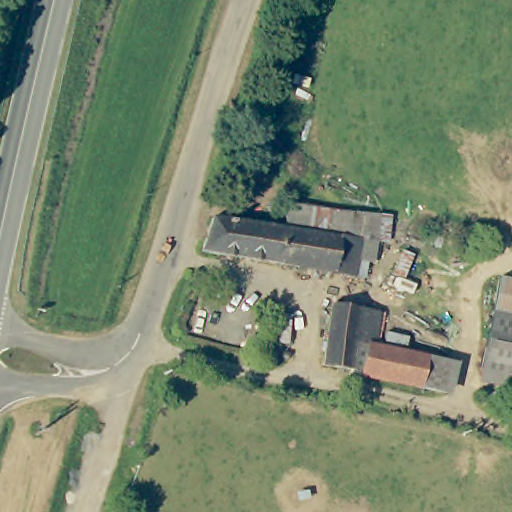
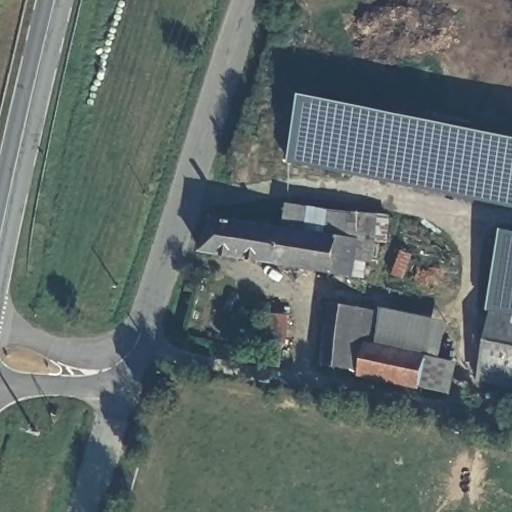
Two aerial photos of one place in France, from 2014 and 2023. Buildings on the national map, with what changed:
new [(302,95),(512,137),(512,206),(290,163),(302,95)]
new [(346,233),(284,223),(287,203),(349,212),(346,233)]
unchanged [(346,233),(350,207),(376,210),(371,256),(366,256),(364,273),(352,271),(359,235),(346,233)]
unchanged [(277,222),(346,233),(359,235),(352,271),(200,246),(212,212),(277,222)]
new [(512,389),(476,382),(498,277),(512,279),(512,389)]
unchanged [(327,365),(336,303),(363,307),(355,369),(327,365)]
new [(448,321),(441,358),(377,344),(383,311),(384,306),(448,321)]
unchanged [(383,311),(377,344),(458,361),(451,392),(364,374),(355,369),(363,307),(383,311)]
unchanged [(282,344),(259,341),(261,313),(284,315),(282,344)]
unchanged [(275,356),(273,358),(270,361),(264,362),(259,359),(257,355),(256,351),(258,347),(260,344),(264,343),(268,343),(272,344),(274,346),(276,351),(275,356)]

